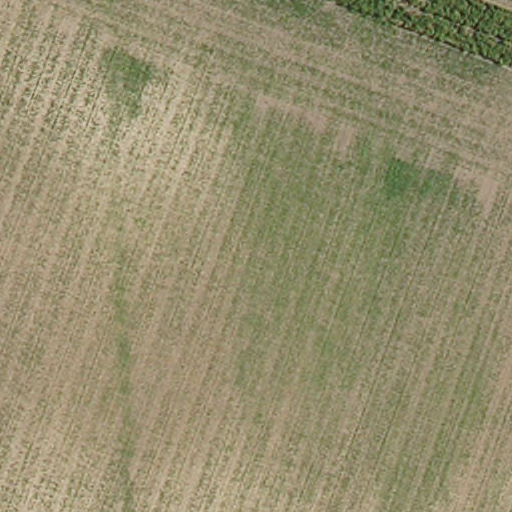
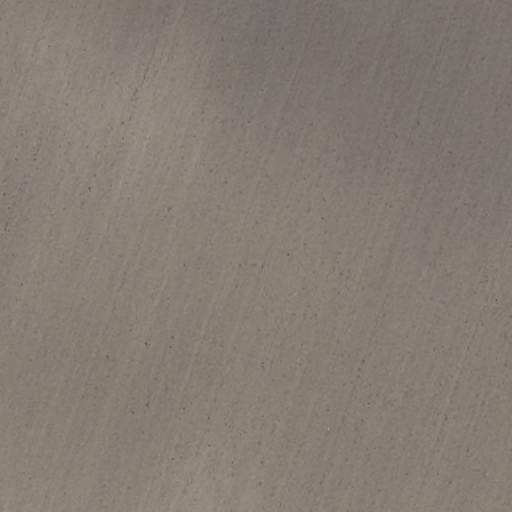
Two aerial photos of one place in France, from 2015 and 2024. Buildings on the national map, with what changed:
[]

